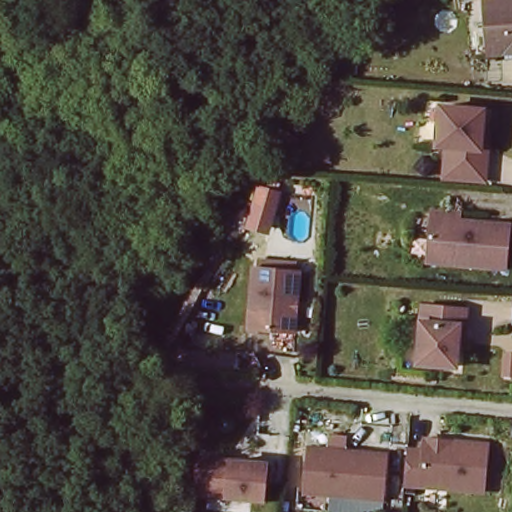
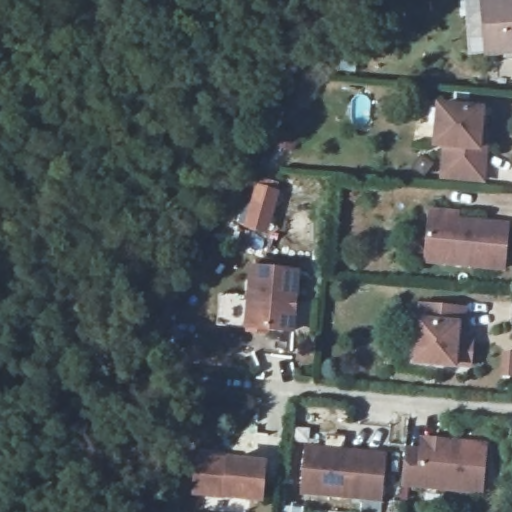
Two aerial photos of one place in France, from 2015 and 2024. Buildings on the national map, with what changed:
unchanged [(496,33),(496,43),(479,44),(476,0),(512,0),(512,32),(496,33)]
unchanged [(483,132),(489,132),(488,148),(485,180),(445,176),(448,146),(438,145),(442,105),(485,110),(483,132)]
unchanged [(495,263),(417,255),(421,212),(422,204),(450,207),(450,215),(500,220),(495,263)]
unchanged [(300,267),(293,336),(248,331),(255,262),(300,267)]
unchanged [(460,304),(458,320),(454,320),(450,361),(411,357),(418,299),(460,304)]
unchanged [(223,455),(233,456),(232,461),(239,461),(240,457),(240,448),(236,448),(237,432),(262,434),(259,459),(256,494),(189,488),(192,457),(223,460),(223,455)]
unchanged [(417,432),(443,435),(480,438),(476,484),(396,477),(397,462),(399,442),(416,444),(417,432)]
unchanged [(380,442),(376,486),(297,479),(301,435),(380,442)]

